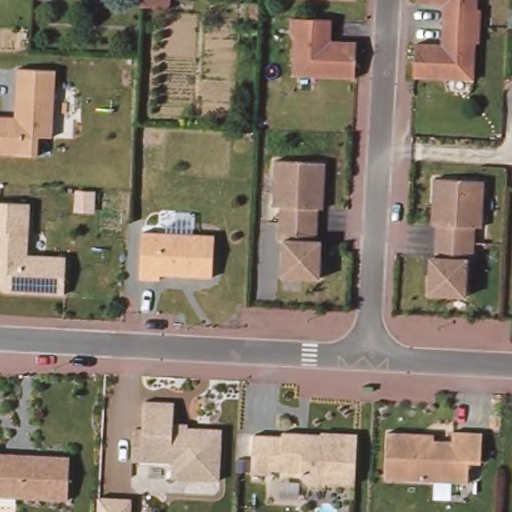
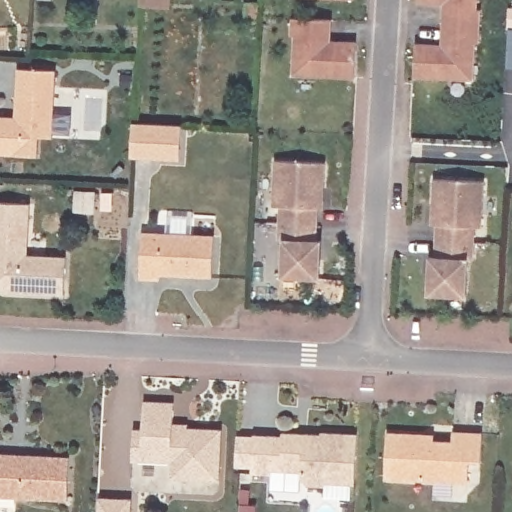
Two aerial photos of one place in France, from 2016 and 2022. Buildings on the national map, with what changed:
unchanged [(141,9),(142,0),(174,0),(173,10),(141,9)]
unchanged [(479,5),(477,39),(474,39),(473,76),(412,74),(414,41),(440,41),(442,0),(476,0),(475,5),(479,5)]
unchanged [(337,16),(336,38),(362,40),(359,76),(297,71),(299,31),(296,31),(298,14),(337,16)]
unchanged [(16,69),(57,70),(52,139),(39,139),(37,158),(0,156),(0,116),(15,116),(16,69)]
new [(130,158),(132,123),(181,126),(179,161),(130,158)]
unchanged [(322,258),(322,277),(284,275),(285,239),(280,239),(281,206),(274,205),(276,159),(326,161),(325,187),(324,207),(319,207),(319,223),(318,239),(323,239),(322,258)]
unchanged [(437,257),(439,226),(434,225),(434,205),(435,179),(485,182),(483,228),(476,227),(475,260),(470,260),(468,297),(430,295),(431,276),(432,257),(437,257)]
unchanged [(29,251),(68,254),(66,295),(2,292),(0,289),(0,196),(31,197),(29,251)]
unchanged [(144,229),(217,233),(214,275),(162,272),(162,277),(142,276),(144,229)]
unchanged [(221,477),(173,475),(174,459),(134,457),(136,425),(146,426),(147,398),(177,400),(176,420),(190,421),(190,425),(224,427),(221,477)]
unchanged [(255,432),(284,433),(284,429),(323,432),(323,430),(359,432),(356,485),(327,483),(327,487),(309,486),(302,474),(303,469),(273,467),(272,471),(253,470),(255,432)]
unchanged [(436,434),(436,440),(454,441),(455,431),(483,433),(482,462),(470,462),(468,482),(386,477),(389,431),(436,434)]
unchanged [(69,498),(0,494),(0,451),(70,454),(69,498)]
unchanged [(99,497),(131,498),(130,512),(98,512),(99,497)]

